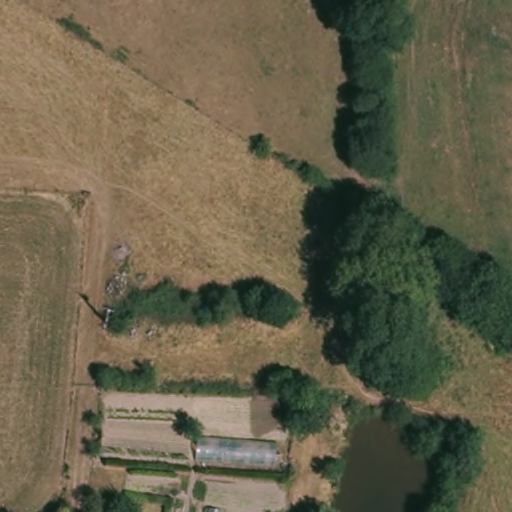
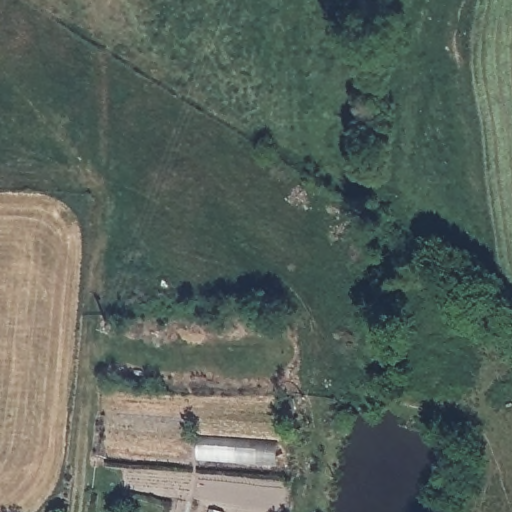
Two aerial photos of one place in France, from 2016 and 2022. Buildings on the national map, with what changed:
unchanged [(278,440),(278,462),(199,455),(200,434),(278,440)]

